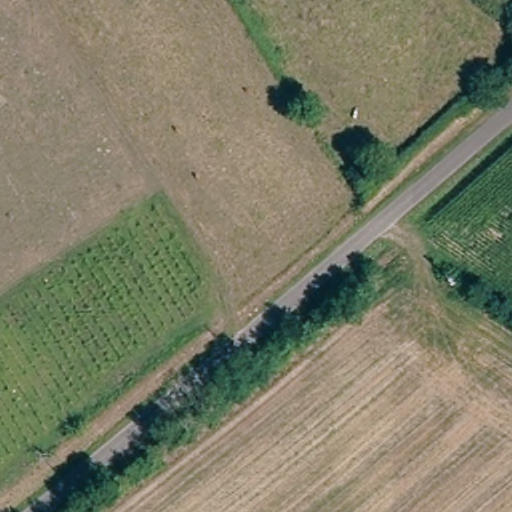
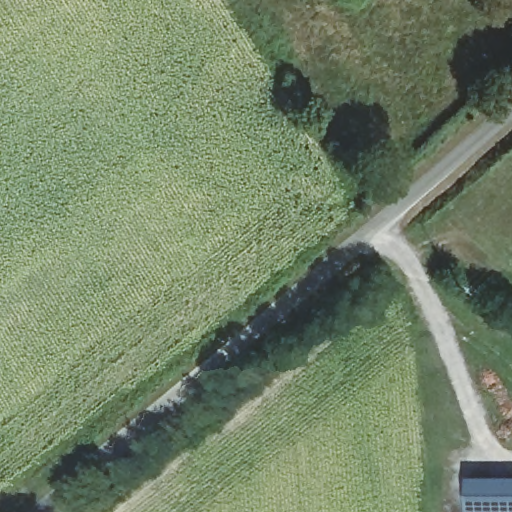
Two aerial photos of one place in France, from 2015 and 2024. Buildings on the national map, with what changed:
new [(512,485),(512,512),(473,512),(472,486),(512,485)]

